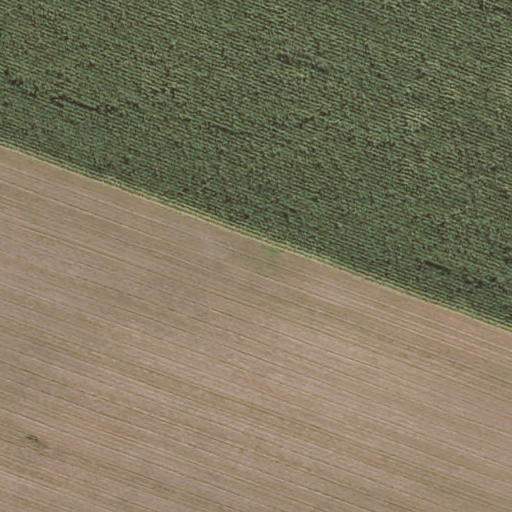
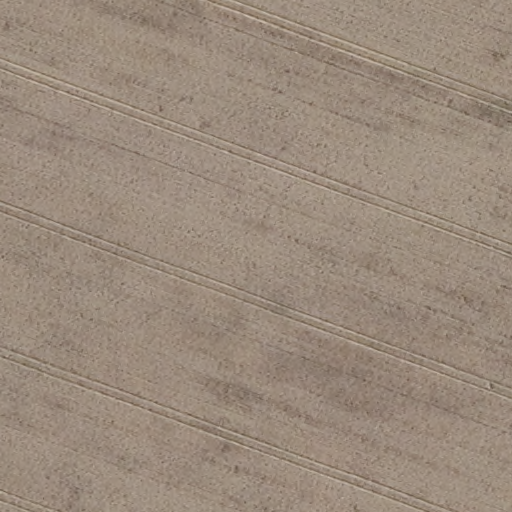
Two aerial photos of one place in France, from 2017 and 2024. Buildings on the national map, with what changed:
[]

